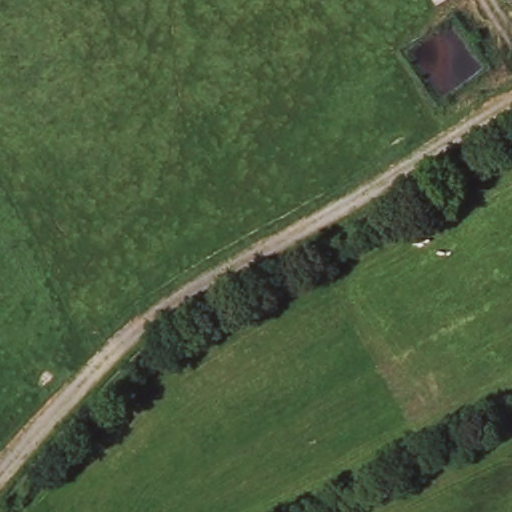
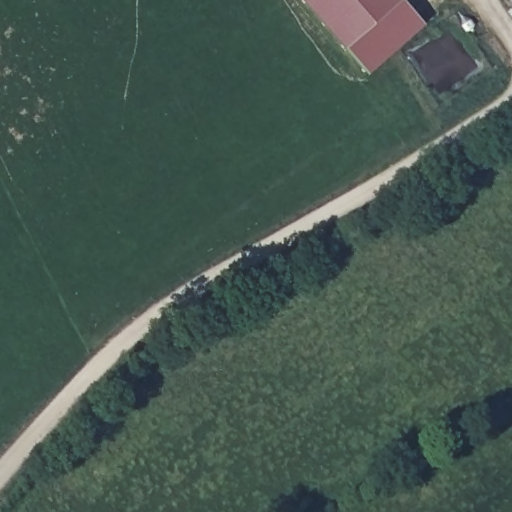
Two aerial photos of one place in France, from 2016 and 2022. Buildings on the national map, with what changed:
new [(368,74),(302,0),(404,0),(423,23),(368,74)]

